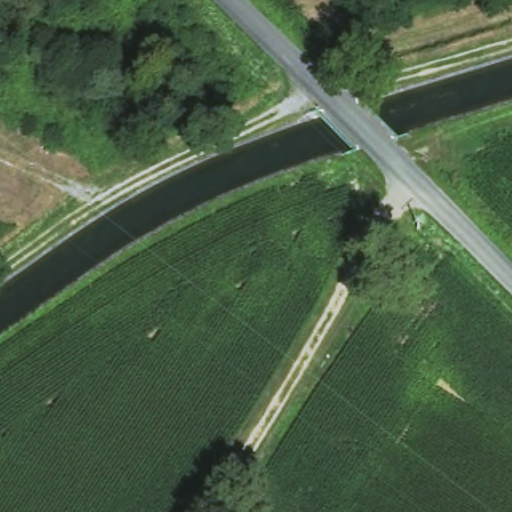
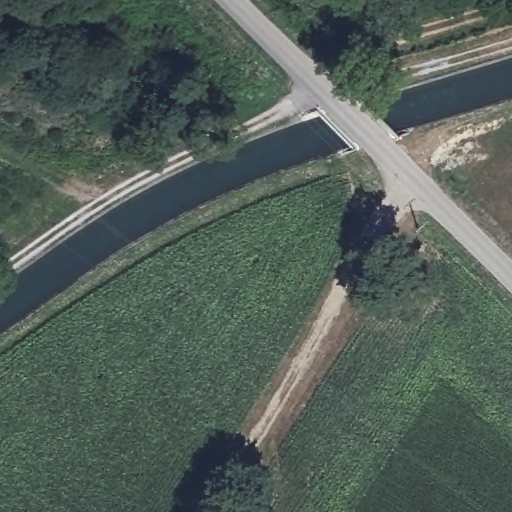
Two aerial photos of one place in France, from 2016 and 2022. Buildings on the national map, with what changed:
[]

